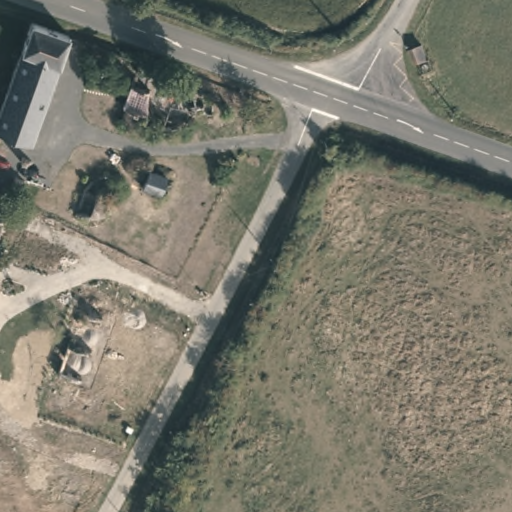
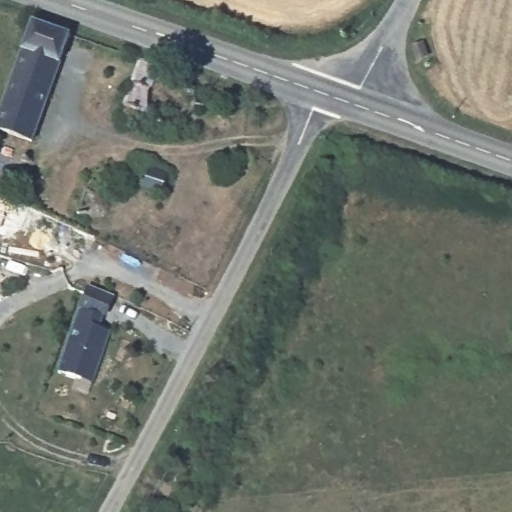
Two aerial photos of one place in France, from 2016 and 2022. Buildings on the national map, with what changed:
unchanged [(0,129),(0,120),(30,24),(70,37),(34,142),(0,129)]
unchanged [(186,76),(185,81),(196,86),(190,100),(186,99),(179,115),(172,121),(162,123),(146,118),(144,112),(139,109),(131,119),(127,120),(119,116),(120,105),(119,102),(134,57),(186,76)]
unchanged [(167,176),(160,194),(140,186),(147,169),(167,176)]
new [(80,307),(103,315),(100,327),(111,331),(94,382),(58,371),(80,307)]

